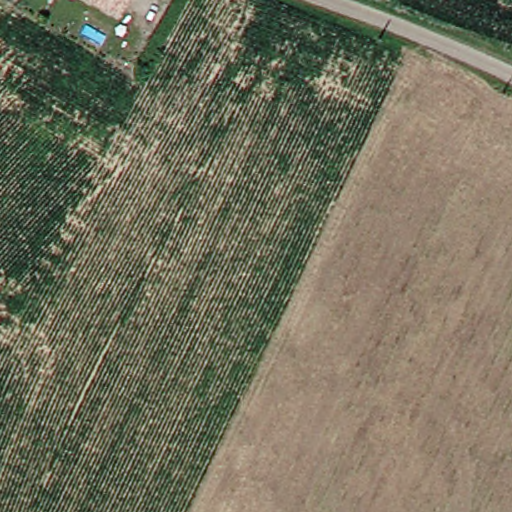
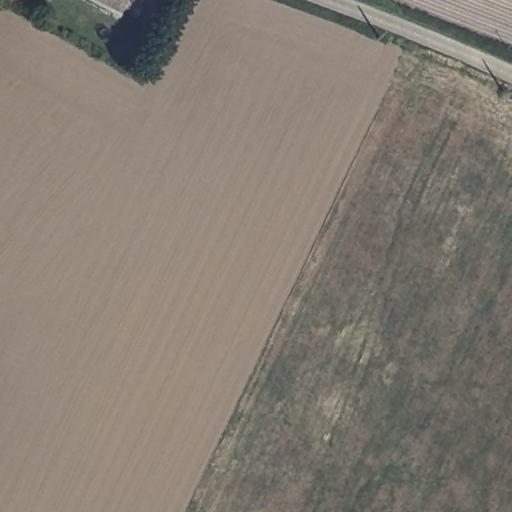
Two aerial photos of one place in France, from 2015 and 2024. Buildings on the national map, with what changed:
unchanged [(87,0),(122,0),(114,15),(87,0)]

